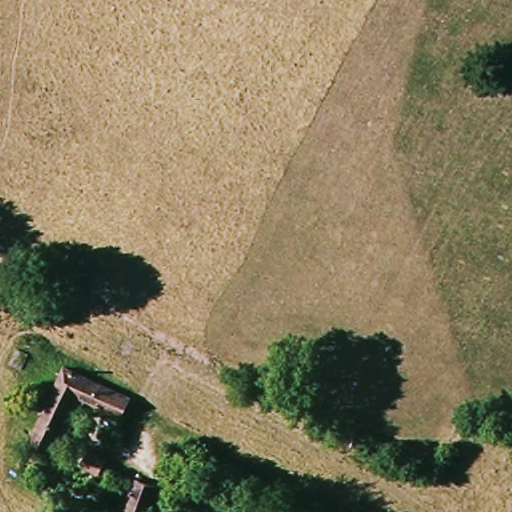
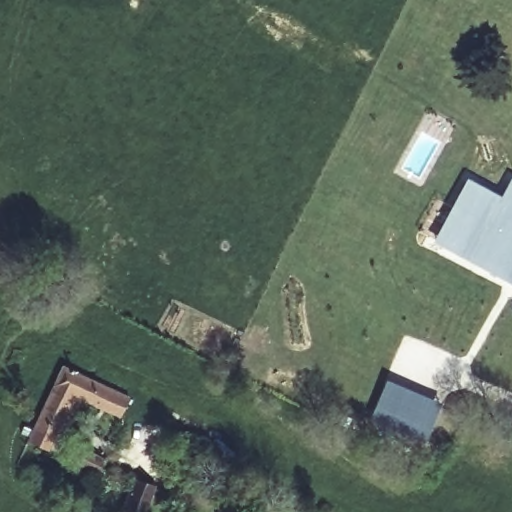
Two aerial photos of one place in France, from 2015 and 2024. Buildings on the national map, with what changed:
new [(500,193),(511,175),(512,176),(512,287),(429,241),(467,174),(500,193)]
unchanged [(128,391),(119,414),(70,393),(45,445),(28,435),(58,363),(128,391)]
unchanged [(85,448),(108,458),(99,475),(78,463),(85,448)]
unchanged [(135,512),(126,508),(138,480),(154,487),(144,512),(135,512)]

